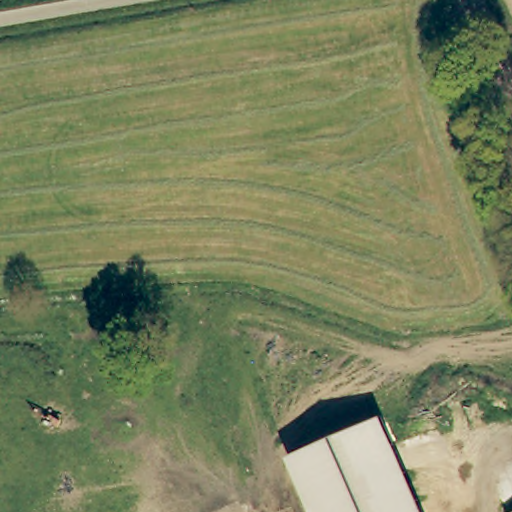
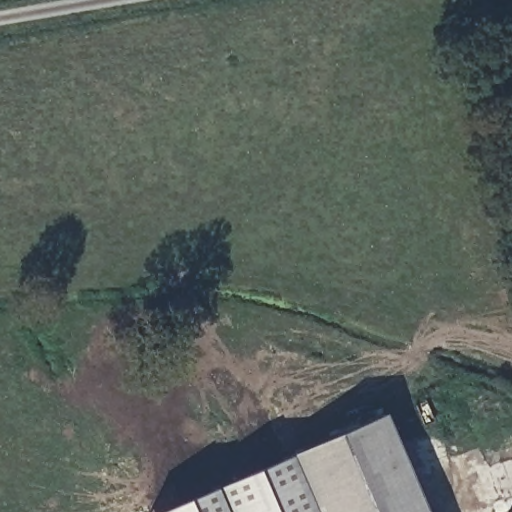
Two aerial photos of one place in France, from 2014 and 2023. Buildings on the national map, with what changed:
unchanged [(384,417),(425,512),(313,512),(289,458),(384,417)]
new [(313,512),(162,512),(289,458),(313,512)]

